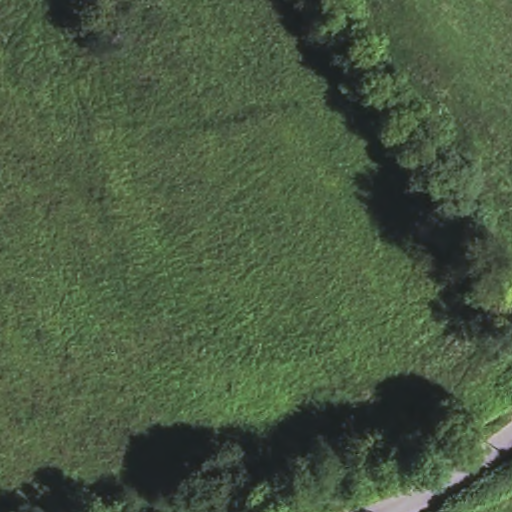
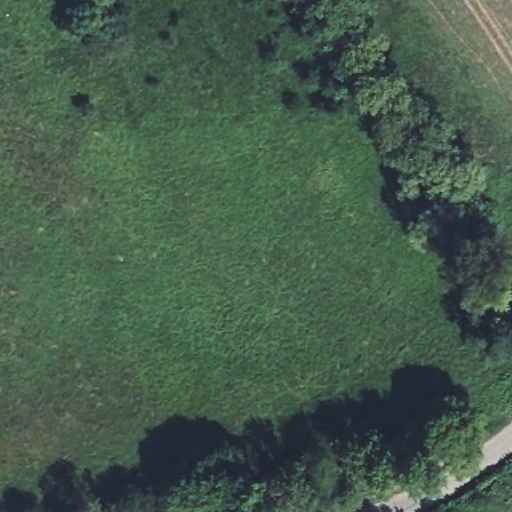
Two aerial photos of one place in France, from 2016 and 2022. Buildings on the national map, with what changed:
[]

